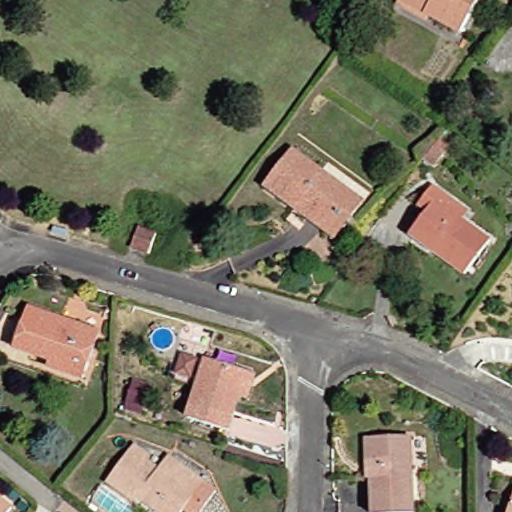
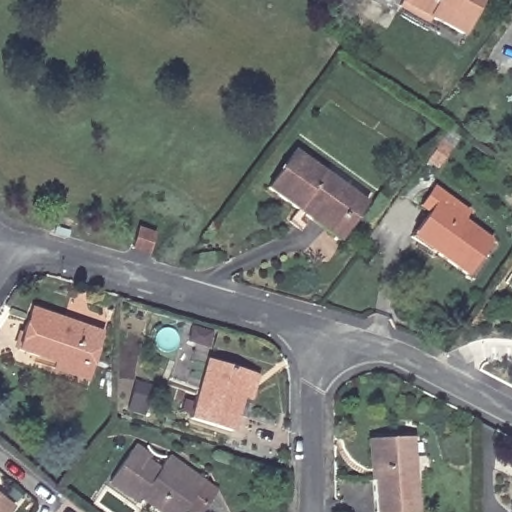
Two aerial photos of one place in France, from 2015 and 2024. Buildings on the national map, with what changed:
unchanged [(457,40),(424,23),(420,29),(393,15),(401,0),(478,0),(457,40)]
unchanged [(431,161),(443,144),(444,142),(454,148),(452,150),(440,167),(431,161)]
unchanged [(289,151),(360,204),(331,243),(260,190),(289,151)]
unchanged [(460,277),(406,238),(424,214),(415,208),(429,189),(442,198),(461,212),(455,221),(485,242),(460,277)]
unchanged [(156,247),(153,256),(136,251),(139,241),(156,247)]
unchanged [(52,370),(16,357),(30,316),(99,340),(84,388),(50,376),(52,370)]
unchanged [(188,421),(206,362),(248,375),(256,378),(249,403),(240,401),(230,434),(188,421)]
unchanged [(372,512),(371,483),(368,482),(367,442),(374,442),(411,441),(414,512),(372,512)]
unchanged [(131,506),(103,485),(125,452),(130,446),(146,457),(142,463),(154,472),(163,459),(211,492),(199,510),(197,512),(148,512),(134,502),(131,506)]
unchanged [(505,512),(512,492),(512,512),(505,512)]
unchanged [(6,512),(0,512),(0,505),(7,511),(6,512)]

